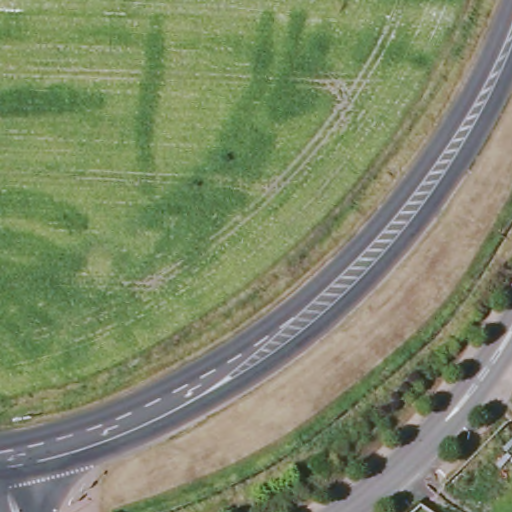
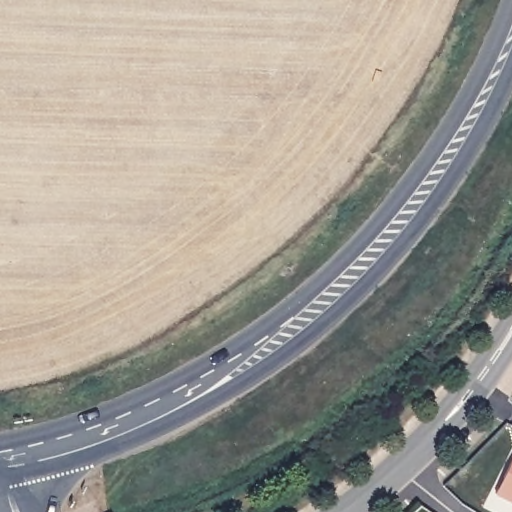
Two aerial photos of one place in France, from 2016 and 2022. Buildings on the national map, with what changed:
new [(496,494),(512,462),(512,503),(496,494)]

